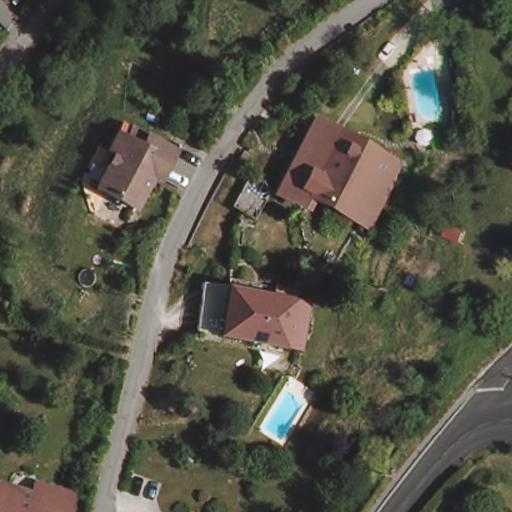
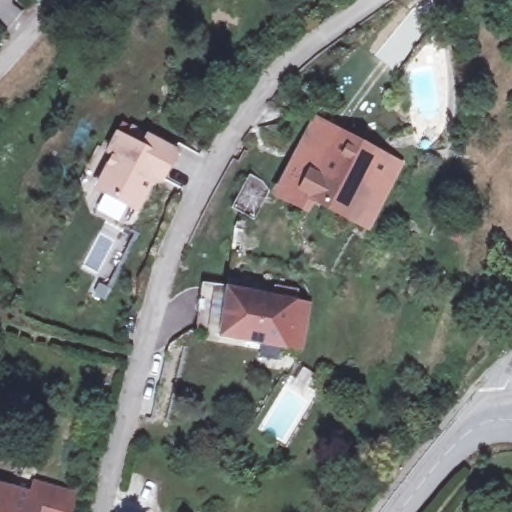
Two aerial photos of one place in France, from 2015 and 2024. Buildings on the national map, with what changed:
unchanged [(290,174),(317,119),(400,164),(366,225),(312,198),(305,207),(292,201),(280,194),(290,174)]
unchanged [(160,174),(152,170),(134,204),(96,184),(113,151),(108,147),(117,131),(125,135),(130,126),(145,133),(173,146),(160,174)]
unchanged [(219,331),(195,327),(202,281),(224,284),(224,291),(219,331)]
unchanged [(307,346),(293,343),(219,331),(224,291),(280,298),(282,285),(302,288),(299,313),(313,315),(307,346)]
unchanged [(27,491),(31,479),(55,486),(73,491),(67,512),(0,512),(0,484),(27,491)]

